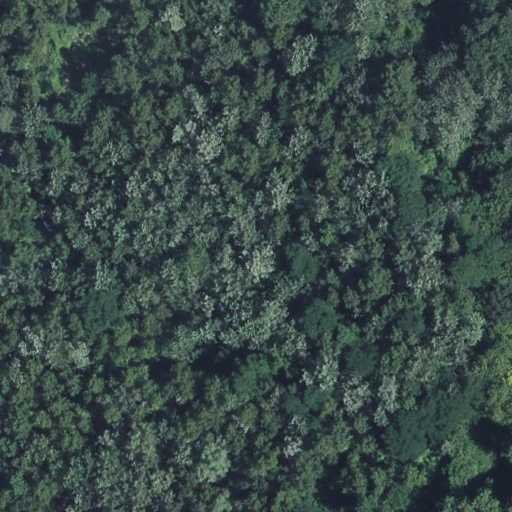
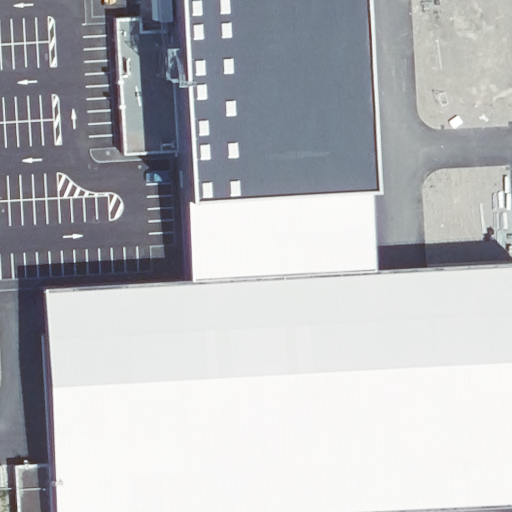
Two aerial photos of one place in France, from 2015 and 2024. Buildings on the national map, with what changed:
new [(367,185),(373,270),(185,280),(181,195),(180,154),(172,31),(171,0),(357,0),(367,185)]
new [(141,18),(143,32),(172,31),(180,154),(123,155),(115,20),(141,18)]
new [(512,504),(368,512),(17,512),(15,466),(50,466),(40,287),(185,280),(373,270),(512,263),(512,504)]

